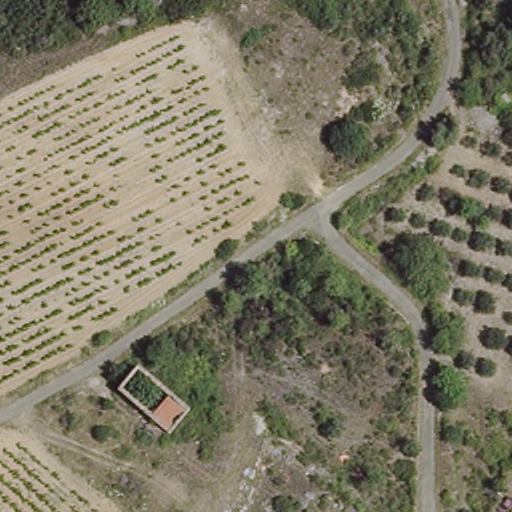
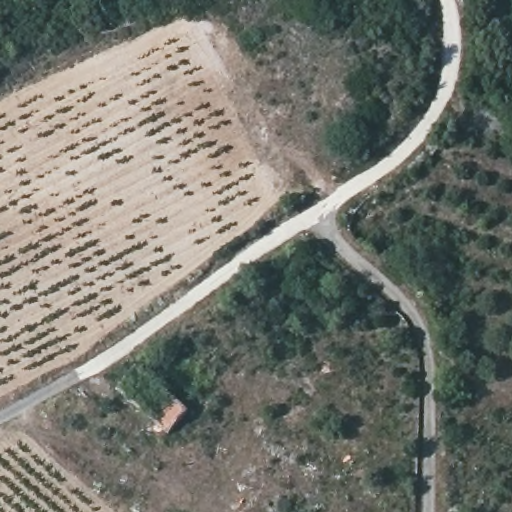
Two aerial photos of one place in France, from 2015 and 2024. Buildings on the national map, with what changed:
unchanged [(190,409),(171,433),(116,388),(135,364),(190,409)]

